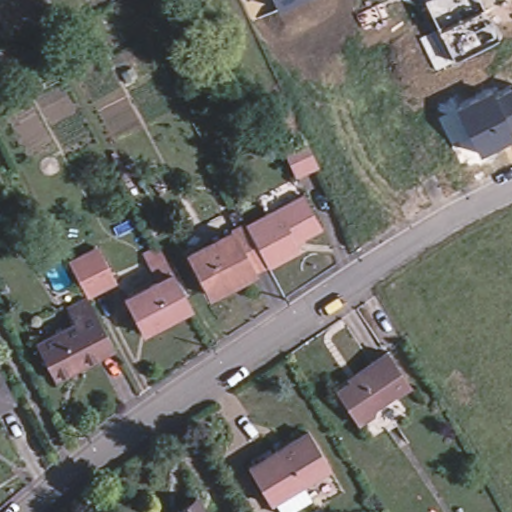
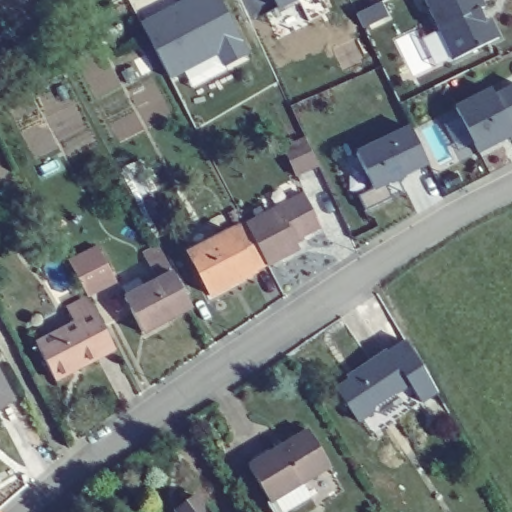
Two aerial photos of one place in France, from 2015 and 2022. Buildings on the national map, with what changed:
new [(222,0),(251,55),(225,67),(217,56),(170,79),(141,21),(186,0),(222,0)]
unchanged [(299,0),(277,11),(273,0),(299,0)]
unchanged [(481,0),(500,36),(455,61),(423,0),(481,0)]
unchanged [(0,67),(0,54),(10,51),(14,61),(0,67)]
unchanged [(455,109),(492,89),(495,96),(512,87),(512,130),(512,131),(512,138),(477,156),(455,109)]
new [(357,196),(372,189),(356,153),(411,126),(429,166),(386,186),(390,200),(364,211),(357,196)]
unchanged [(321,165),(320,165),(300,174),(287,148),(307,139),(309,138),(321,165)]
unchanged [(239,225),(296,195),(313,227),(289,240),(294,250),(261,266),(239,225)]
unchanged [(241,277),(237,276),(230,280),(230,282),(212,291),(190,251),(239,225),(261,266),(241,277)]
unchanged [(82,292),(66,262),(95,247),(112,281),(83,296),(82,292)]
unchanged [(128,305),(159,288),(150,270),(146,262),(162,253),(167,262),(176,279),(190,306),(194,313),(146,339),(128,305)]
unchanged [(54,382),(36,348),(74,328),(64,309),(85,298),(112,351),(54,382)]
new [(405,340),(437,393),(420,404),(409,387),(387,352),(405,340)]
unchanged [(370,430),(362,418),(356,422),(336,389),(351,380),(348,376),(355,372),(387,352),(409,387),(395,397),(404,408),(370,430)]
unchanged [(0,409),(0,380),(12,403),(0,409)]
unchanged [(280,511),(272,498),(267,501),(247,466),(307,431),(327,466),(300,482),(307,494),(280,511)]
unchanged [(197,500),(206,512),(182,512),(197,500)]

